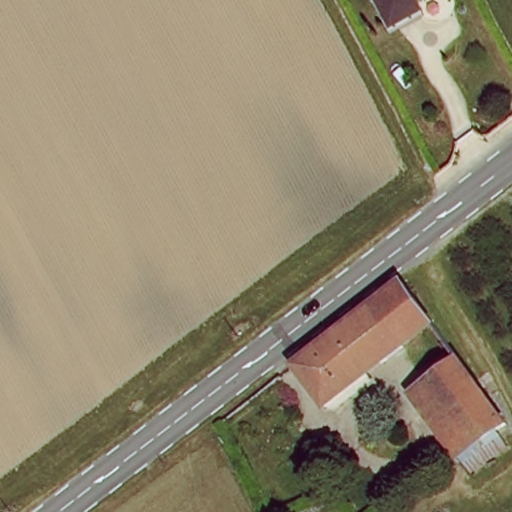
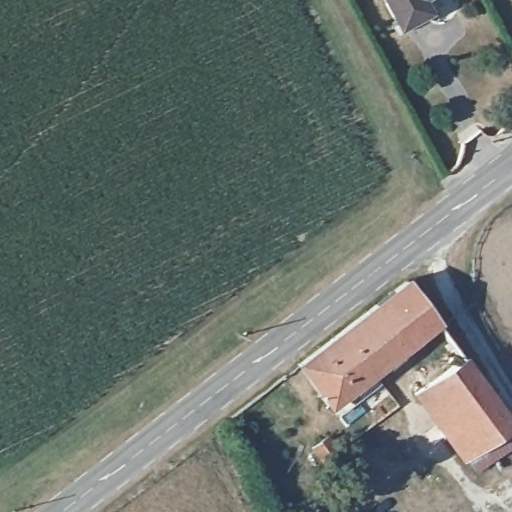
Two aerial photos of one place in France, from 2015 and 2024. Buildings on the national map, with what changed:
unchanged [(413,16),(394,26),(382,0),(418,0),(408,5),(413,16)]
unchanged [(382,305),(407,286),(435,327),(406,350),(376,310),(382,305)]
unchanged [(406,350),(327,413),(299,369),(311,360),(376,310),(406,350)]
unchanged [(412,406),(463,368),(511,432),(461,470),(412,406)]
unchanged [(512,457),(472,484),(461,470),(511,432),(512,433),(512,457)]
unchanged [(317,447),(334,436),(345,453),(328,465),(317,447)]
unchanged [(337,497),(340,506),(325,512),(301,512),(337,497)]

